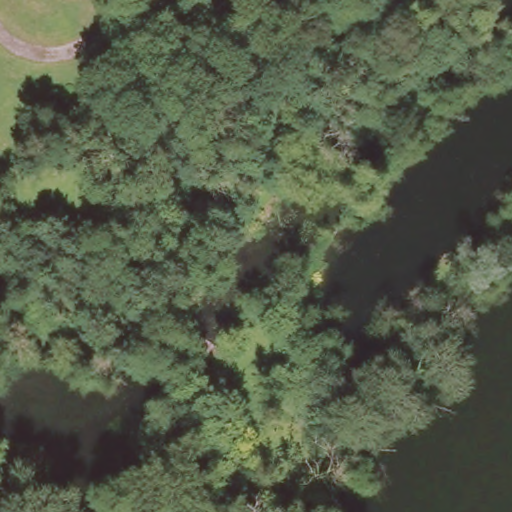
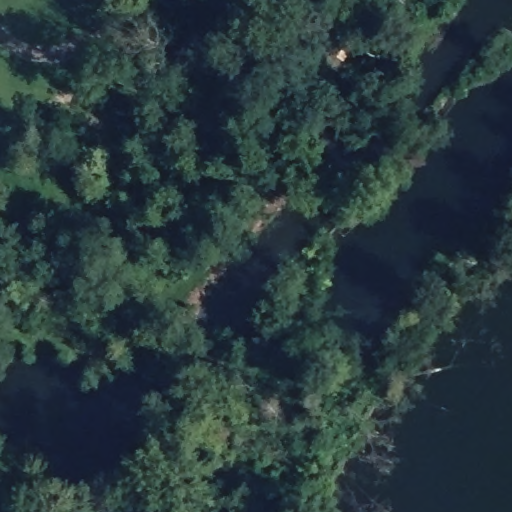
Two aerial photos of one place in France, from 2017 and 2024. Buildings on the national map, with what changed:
unchanged [(140,186),(114,163),(123,151),(150,176),(140,186)]

